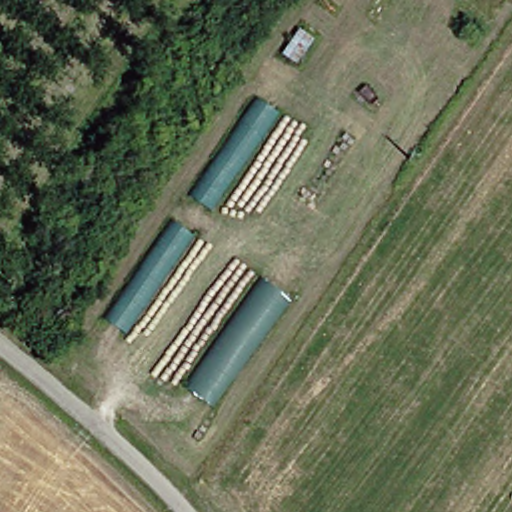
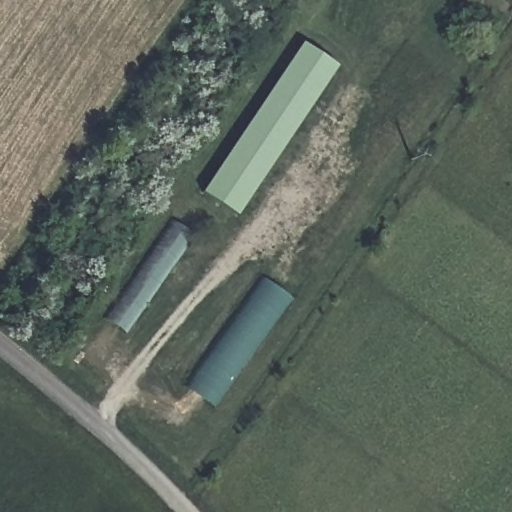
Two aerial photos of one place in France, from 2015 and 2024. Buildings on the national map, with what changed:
new [(296,46),(330,69),(230,219),(196,196),(296,46)]
demolished [(185,190),(255,86),(279,106),(213,206),(185,190)]
unchanged [(101,311),(166,210),(194,229),(126,327),(101,311)]
unchanged [(185,383),(261,270),(293,295),(213,403),(185,383)]

